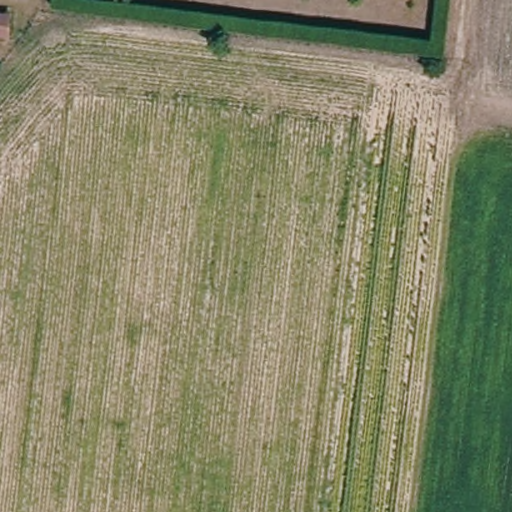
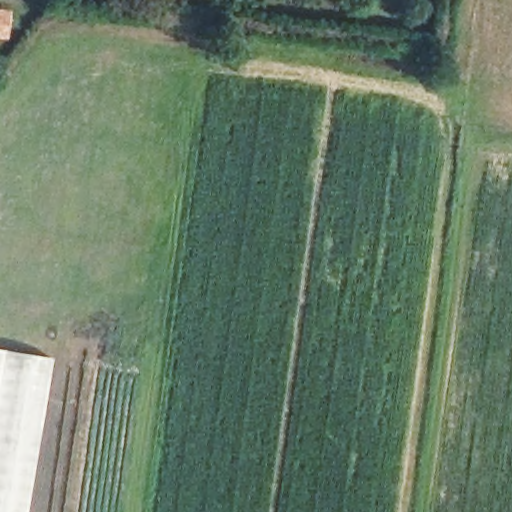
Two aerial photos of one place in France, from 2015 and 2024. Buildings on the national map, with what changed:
unchanged [(15,17),(14,35),(0,33),(0,15),(15,17)]
new [(0,512),(0,349),(52,358),(27,512),(0,512)]

